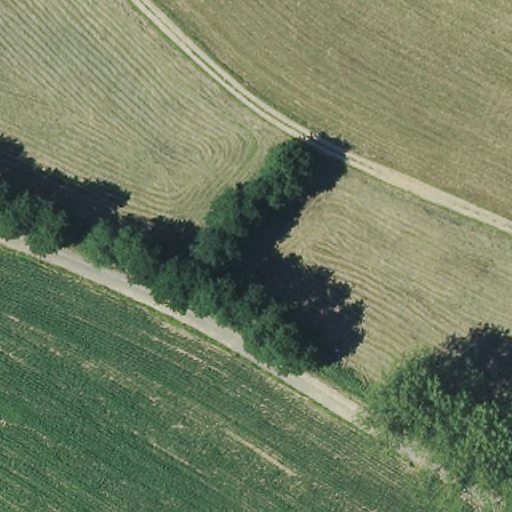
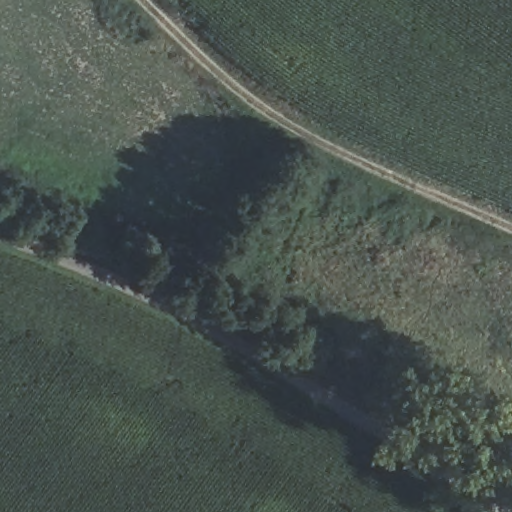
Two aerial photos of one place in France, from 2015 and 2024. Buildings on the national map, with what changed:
[]

